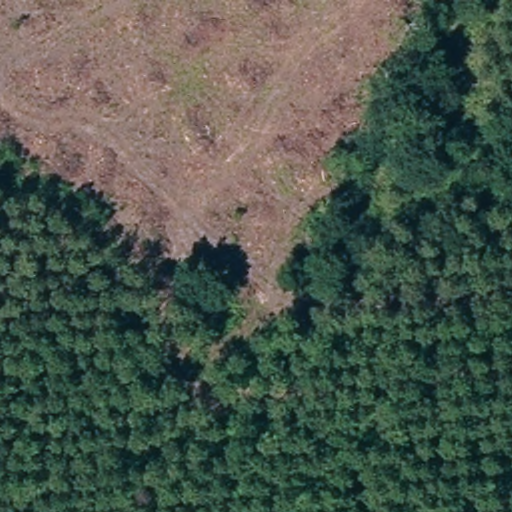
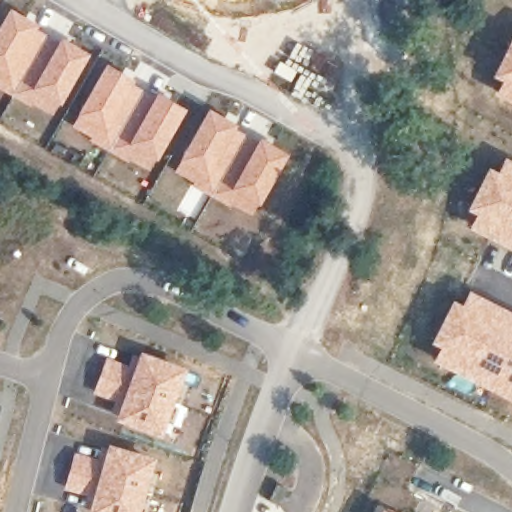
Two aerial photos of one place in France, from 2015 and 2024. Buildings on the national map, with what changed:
new [(46,32),(21,79),(11,95),(0,89),(0,24),(9,8),(46,32)]
new [(512,32),(512,102),(494,93),(500,80),(490,75),(512,32)]
new [(21,79),(31,85),(60,36),(89,52),(52,116),(11,95),(21,79)]
new [(106,62),(143,88),(118,135),(109,151),(71,126),(106,62)]
new [(118,135),(127,140),(157,91),(186,108),(149,172),(109,151),(118,135)]
new [(208,106),(246,132),(220,179),(211,195),(172,170),(208,106)]
new [(220,179),(230,184),(258,136),(287,152),(252,216),(211,195),(220,179)]
new [(487,165),(496,169),(504,155),(512,159),(512,250),(467,227),(475,214),(465,210),(487,165)]
new [(451,297),(461,301),(468,288),(512,311),(512,401),(431,359),(437,347),(428,341),(451,297)]
new [(120,403),(133,366),(141,350),(189,368),(164,437),(114,419),(120,403)]
new [(107,356),(133,366),(120,403),(92,393),(107,356)]
new [(92,496),(102,460),(107,442),(156,456),(149,488),(142,512),(88,512),(92,496)]
new [(74,450),(102,460),(92,496),(64,489),(74,450)]
new [(381,507),(391,512),(378,512),(381,507)]

